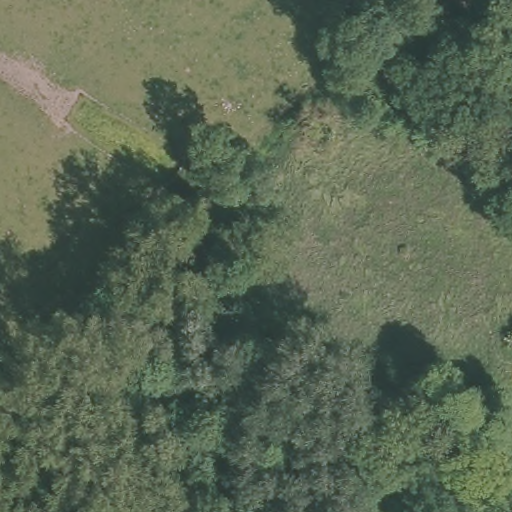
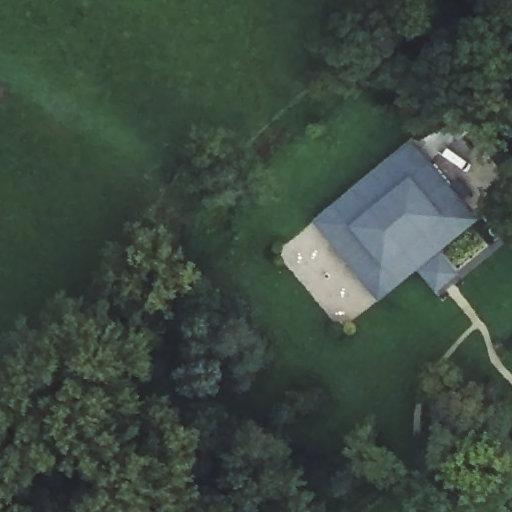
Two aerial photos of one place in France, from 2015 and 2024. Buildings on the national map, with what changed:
new [(478,219),(438,251),(457,274),(436,292),(417,271),(379,300),(311,221),(411,140),(478,219)]

